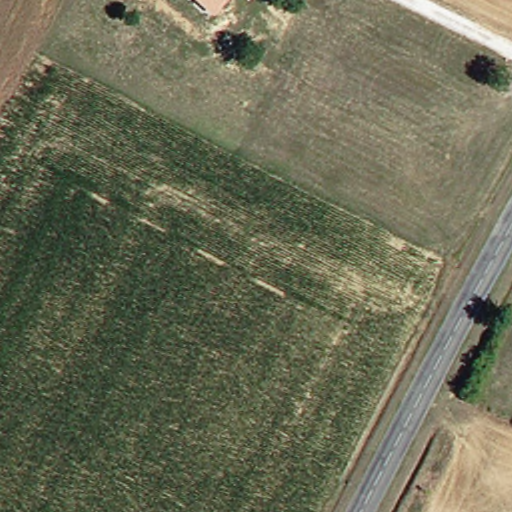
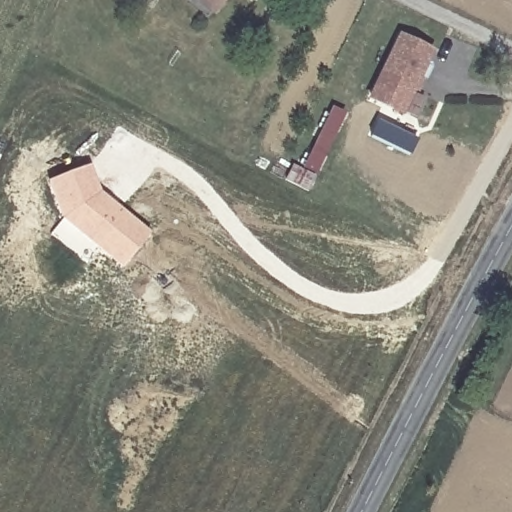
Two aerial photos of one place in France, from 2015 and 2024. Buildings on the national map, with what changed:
unchanged [(198,0),(230,0),(216,17),(198,0)]
new [(407,36),(437,51),(406,112),(376,97),(407,36)]
new [(122,270),(59,219),(45,182),(90,167),(100,192),(151,234),(122,270)]

